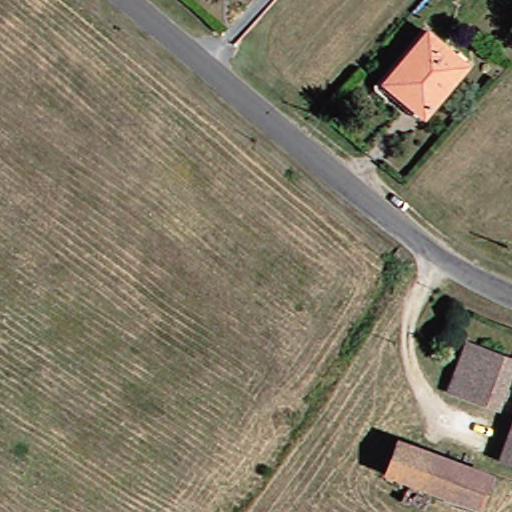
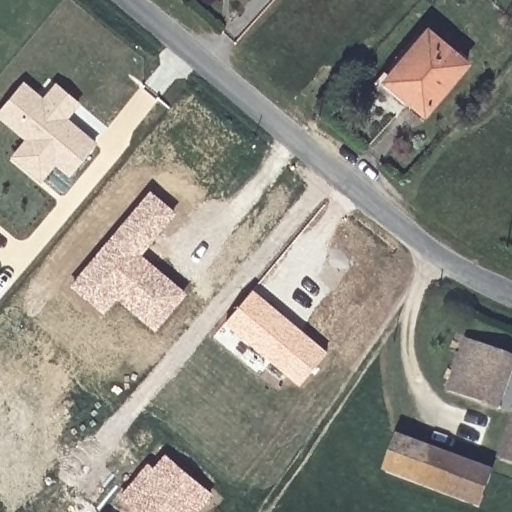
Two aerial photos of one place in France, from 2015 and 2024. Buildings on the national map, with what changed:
unchanged [(387,86),(394,77),(438,30),(474,62),(433,112),(406,90),(399,98),(387,86)]
new [(21,145),(27,137),(0,114),(0,111),(24,83),(91,143),(66,171),(53,160),(47,167),(37,179),(11,157),(21,145)]
new [(56,85),(76,103),(64,118),(43,100),(56,85)]
new [(142,255),(188,294),(155,332),(117,298),(103,314),(70,285),(150,190),(178,212),(142,255)]
new [(300,386),(226,324),(254,289),(329,352),(300,386)]
unchanged [(512,353),(512,410),(452,389),(469,340),(512,353)]
unchanged [(504,455),(512,430),(512,458),(504,455)]
unchanged [(493,507),(413,483),(396,476),(405,446),(421,450),(503,476),(493,507)]
new [(137,512),(118,495),(148,462),(154,468),(166,454),(213,494),(197,512),(137,512)]

